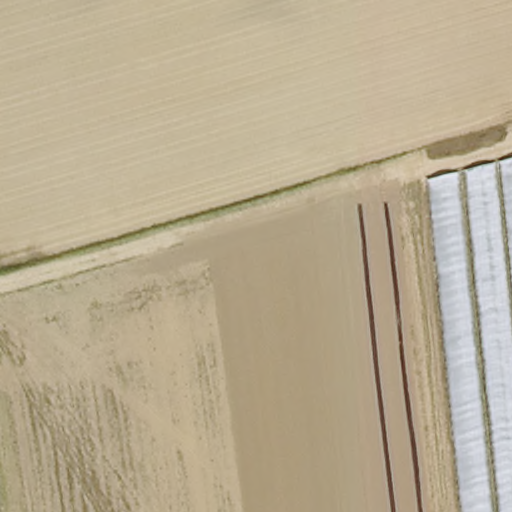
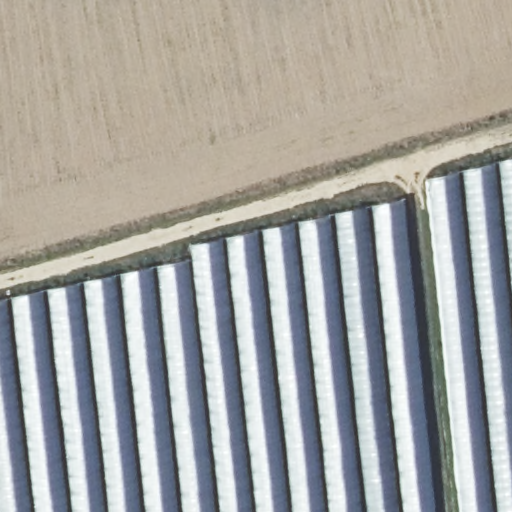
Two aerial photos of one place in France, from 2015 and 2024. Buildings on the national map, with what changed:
new [(459,512),(427,179),(512,156),(512,512),(459,512)]
new [(431,512),(0,512),(0,299),(401,201),(431,512)]

